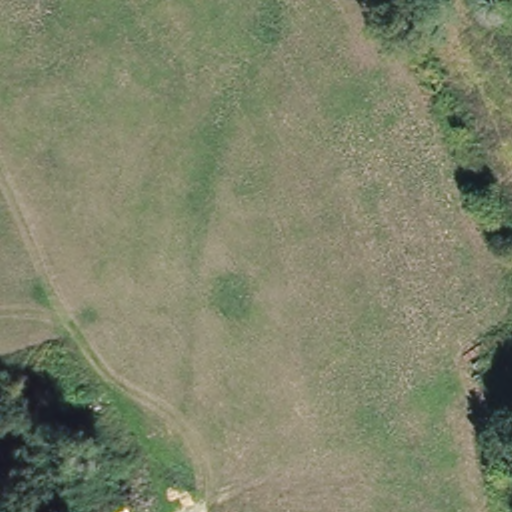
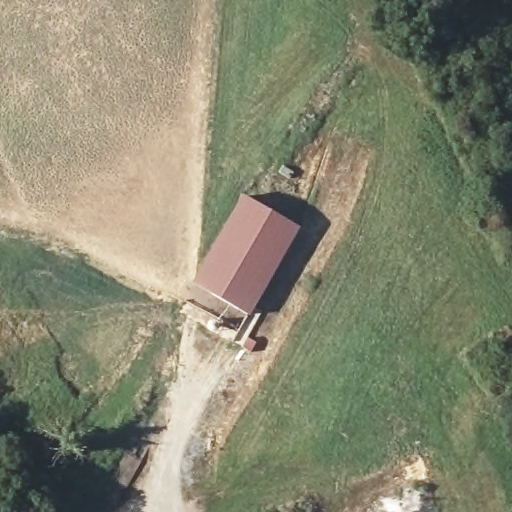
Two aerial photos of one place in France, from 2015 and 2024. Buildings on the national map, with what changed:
new [(300,228),(249,316),(193,283),(243,196),(300,228)]

